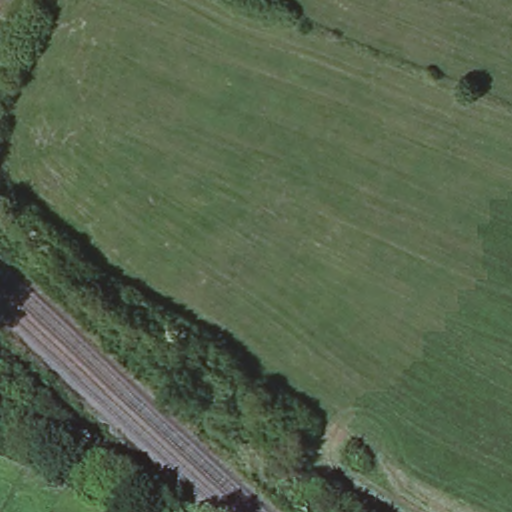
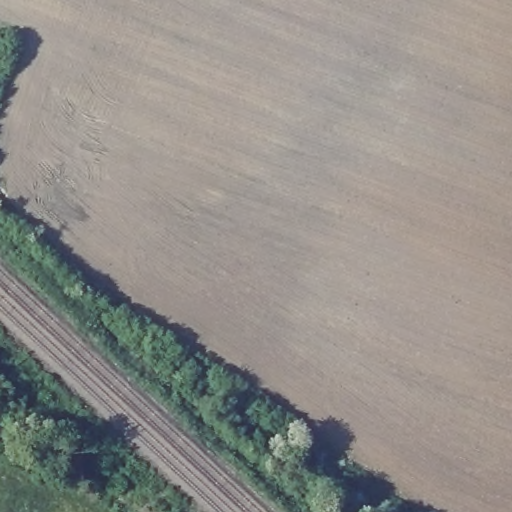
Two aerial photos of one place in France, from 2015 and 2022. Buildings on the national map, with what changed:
[]

